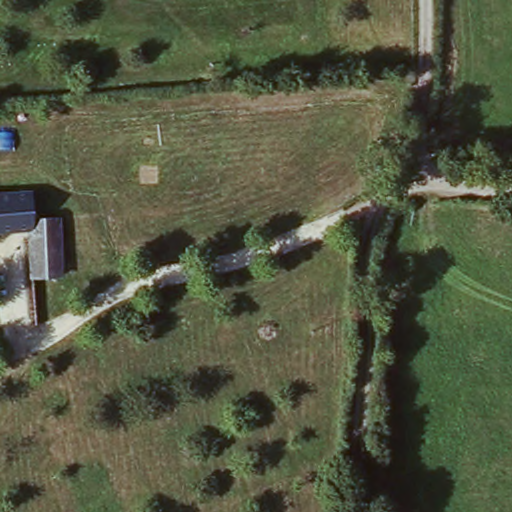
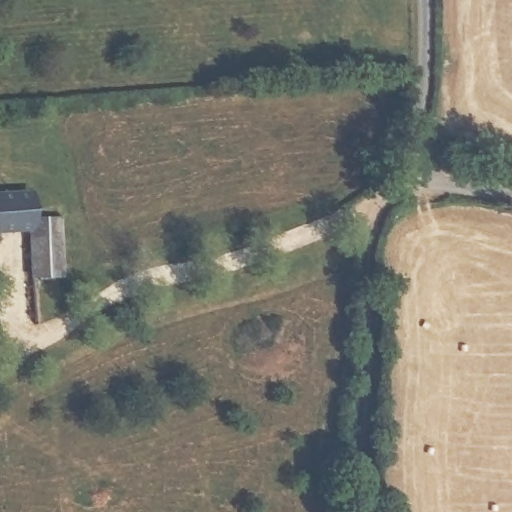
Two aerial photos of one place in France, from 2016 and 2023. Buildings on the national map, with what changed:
unchanged [(24,193),(26,219),(54,217),(58,276),(30,280),(24,230),(0,231),(0,195),(24,193)]

